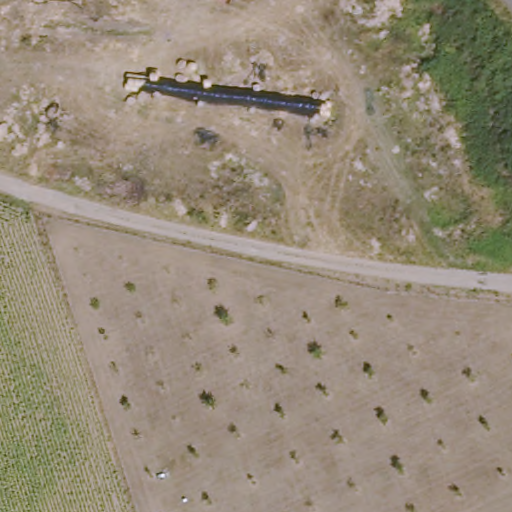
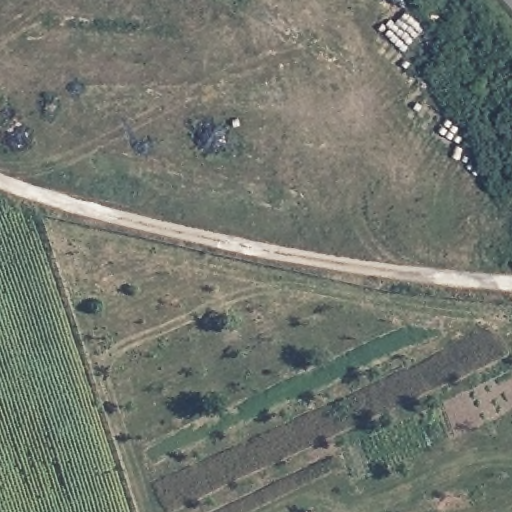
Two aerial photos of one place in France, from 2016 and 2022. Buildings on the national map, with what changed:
[]

